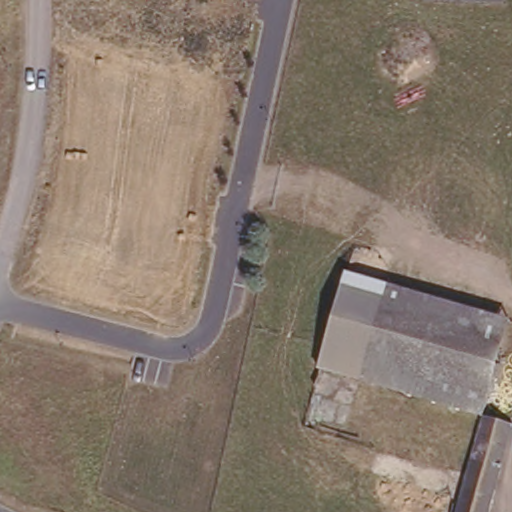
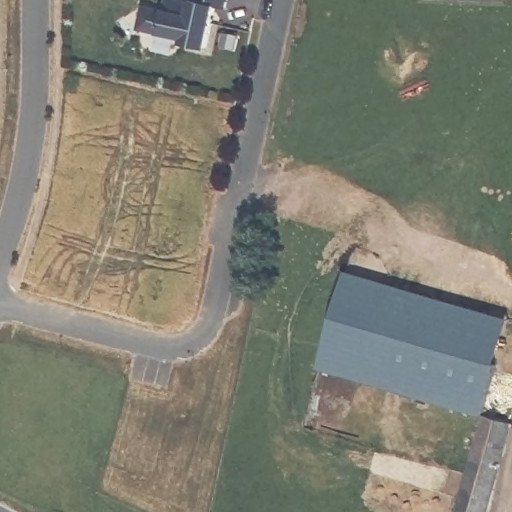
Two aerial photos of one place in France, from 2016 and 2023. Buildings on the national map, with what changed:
new [(164,0),(227,0),(226,6),(215,5),(206,52),(182,47),(183,39),(158,34),(136,29),(141,5),(163,6),(164,0)]
unchanged [(318,368),(344,273),(498,314),(471,410),(318,368)]
unchanged [(480,415),(511,424),(486,512),(451,512),(480,415)]

